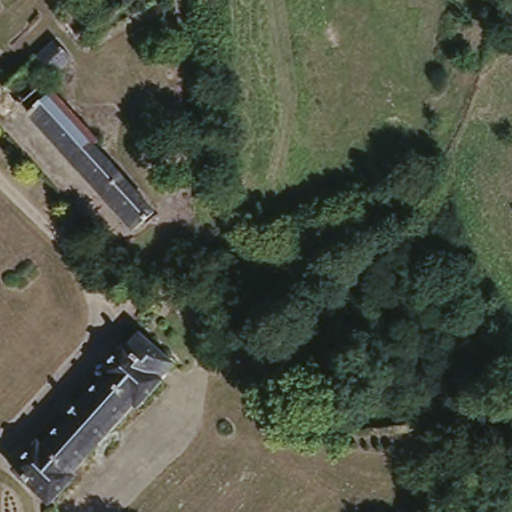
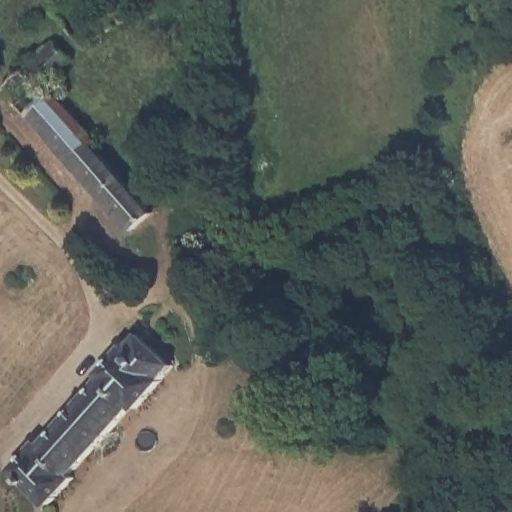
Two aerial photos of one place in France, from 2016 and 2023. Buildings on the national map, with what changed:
unchanged [(54,38),(70,55),(49,71),(58,82),(53,87),(98,140),(95,142),(153,208),(132,227),(1,79),(54,38)]
unchanged [(33,435),(39,440),(102,369),(96,365),(133,325),(169,356),(156,370),(158,372),(133,400),(129,397),(67,465),(70,469),(47,495),(11,460),(33,435)]

